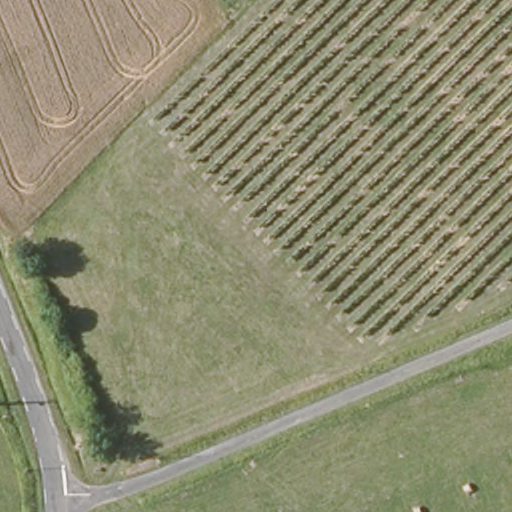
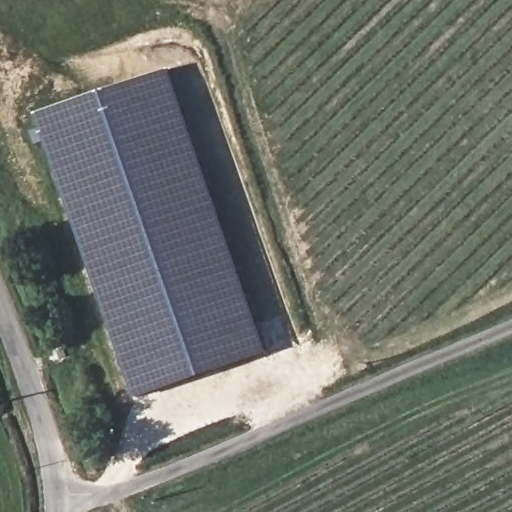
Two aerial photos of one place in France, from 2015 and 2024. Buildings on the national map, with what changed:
new [(38,115),(169,67),(269,352),(138,398),(38,115)]

